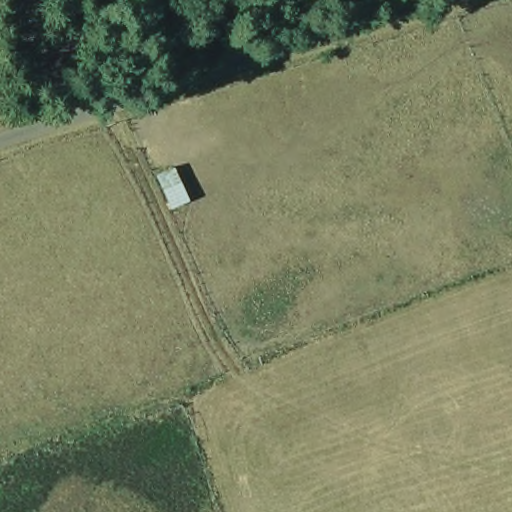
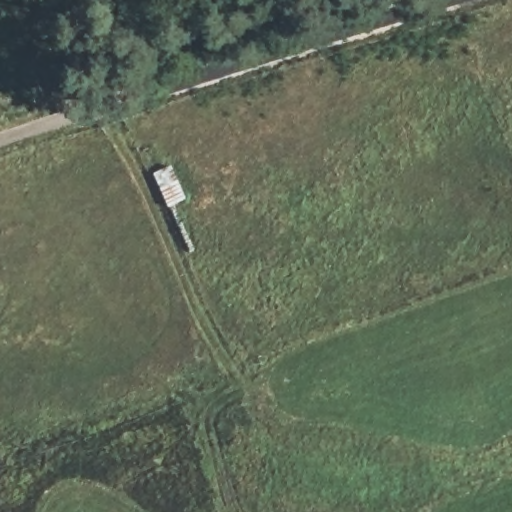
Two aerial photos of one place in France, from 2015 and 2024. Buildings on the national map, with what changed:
unchanged [(166,210),(158,189),(180,180),(188,200),(166,210)]

